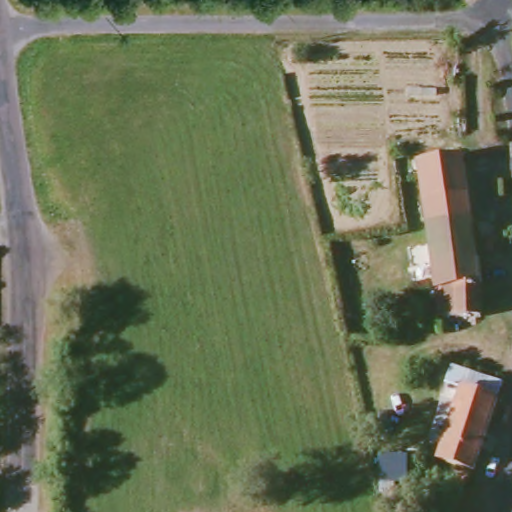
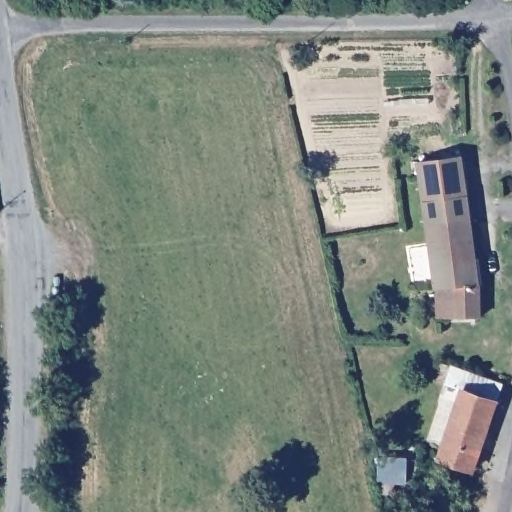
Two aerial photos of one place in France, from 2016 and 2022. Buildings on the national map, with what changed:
unchanged [(477,285),(481,285),(483,315),(438,317),(418,163),(461,158),(477,285)]
unchanged [(501,400),(471,488),(437,476),(458,419),(438,411),(449,382),(501,400)]
unchanged [(383,504),(379,460),(412,457),(416,502),(383,504)]

